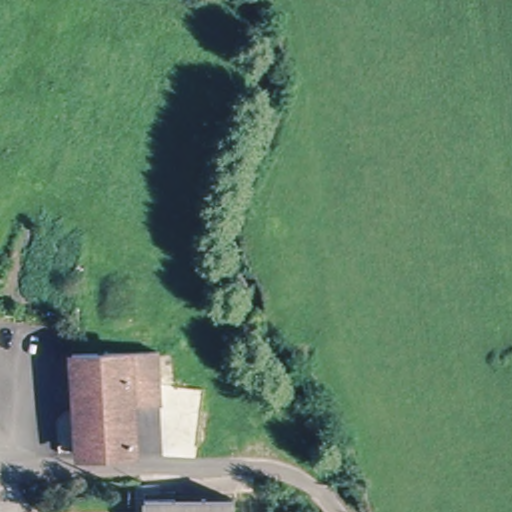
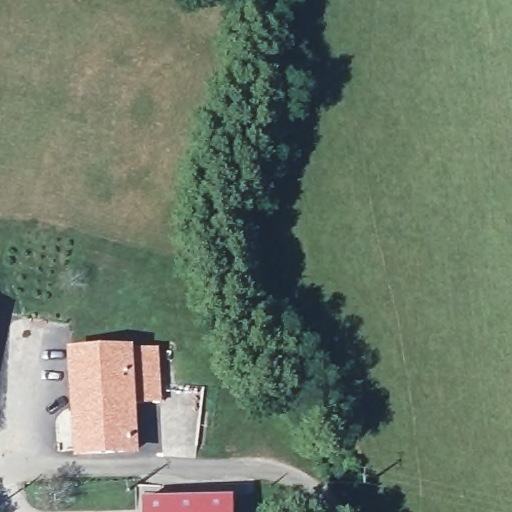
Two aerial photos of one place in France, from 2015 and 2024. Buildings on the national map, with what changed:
unchanged [(158,346),(159,392),(127,393),(126,425),(131,424),(133,446),(70,448),(68,348),(158,346)]
unchanged [(174,455),(175,426),(183,426),(183,409),(200,409),(199,456),(174,455)]
unchanged [(232,495),(233,512),(140,512),(139,499),(232,495)]

